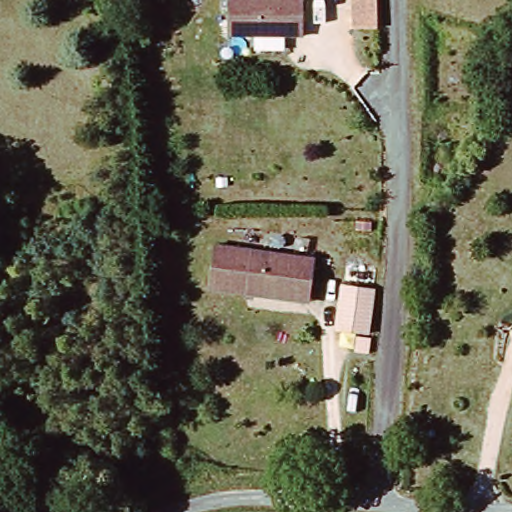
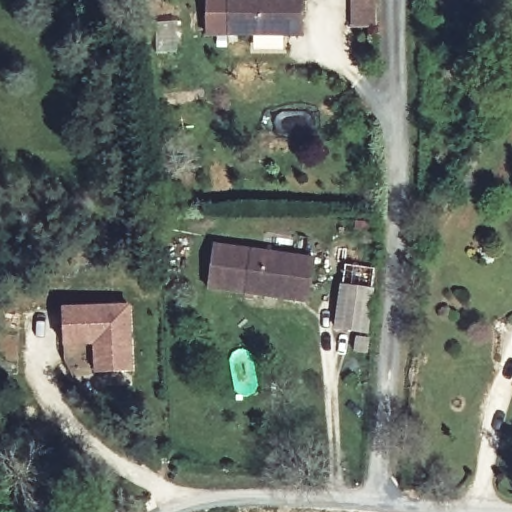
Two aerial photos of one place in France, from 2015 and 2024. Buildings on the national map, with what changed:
unchanged [(235,36),(234,0),(306,0),(306,36),(235,36)]
unchanged [(356,0),(379,0),(380,26),(356,27),(356,0)]
unchanged [(320,262),(313,305),(212,289),(220,246),(320,262)]
unchanged [(374,289),(368,335),(335,330),(340,284),(374,289)]
new [(70,382),(60,364),(59,349),(57,313),(125,309),(127,375),(91,377),(91,378),(70,382)]

